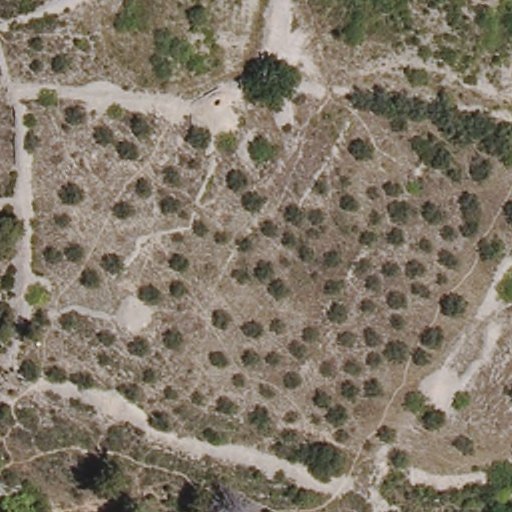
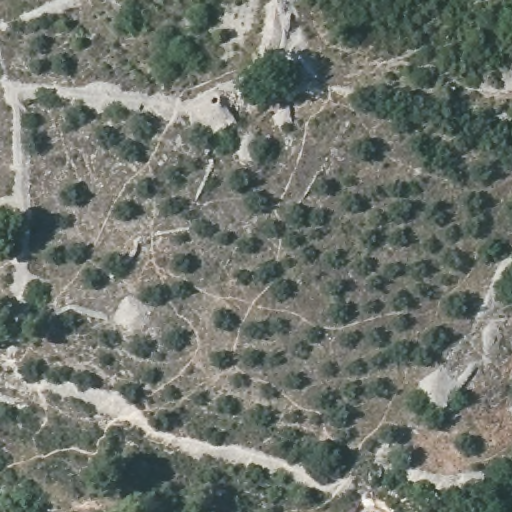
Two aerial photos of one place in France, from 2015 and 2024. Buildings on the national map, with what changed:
[]

